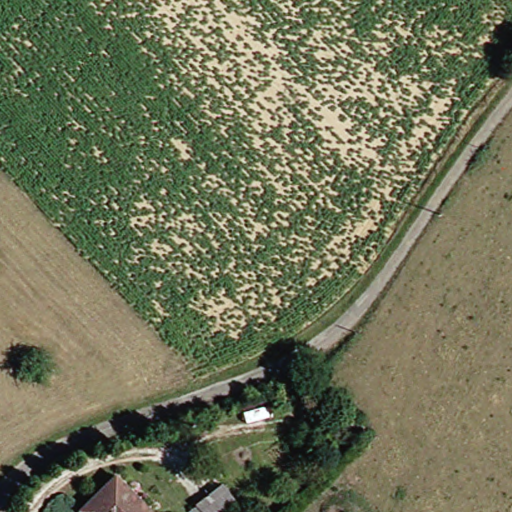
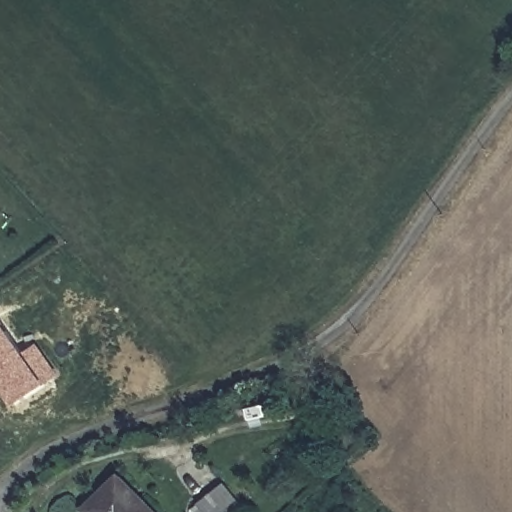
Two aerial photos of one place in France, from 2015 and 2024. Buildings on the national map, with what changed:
new [(46,384),(12,405),(0,386),(0,315),(25,352),(38,342),(60,373),(46,384)]
unchanged [(169,512),(100,512),(93,505),(128,471),(169,512)]
unchanged [(218,485),(237,510),(235,512),(206,512),(198,502),(218,485)]

